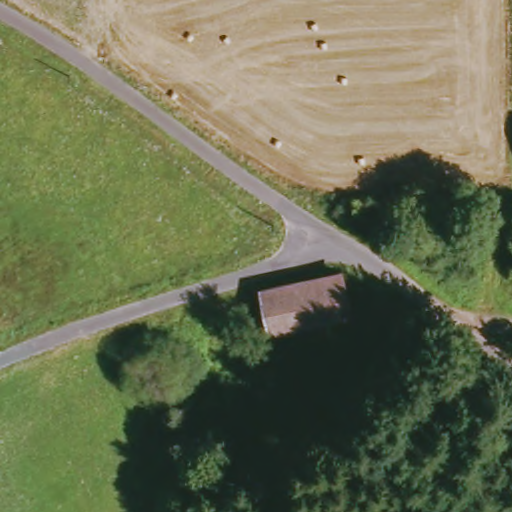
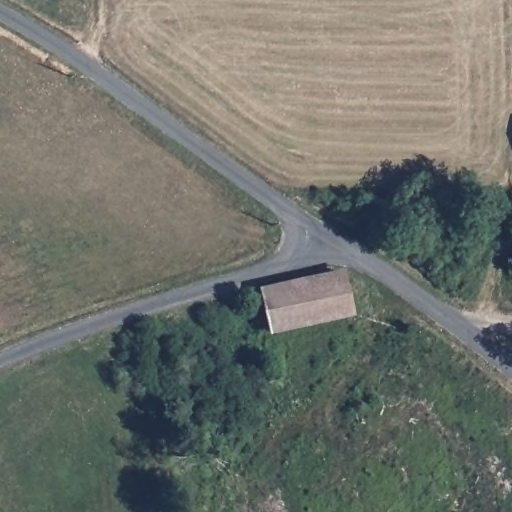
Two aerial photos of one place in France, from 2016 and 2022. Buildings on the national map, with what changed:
unchanged [(352,316),(265,335),(257,289),(345,271),(352,316)]

